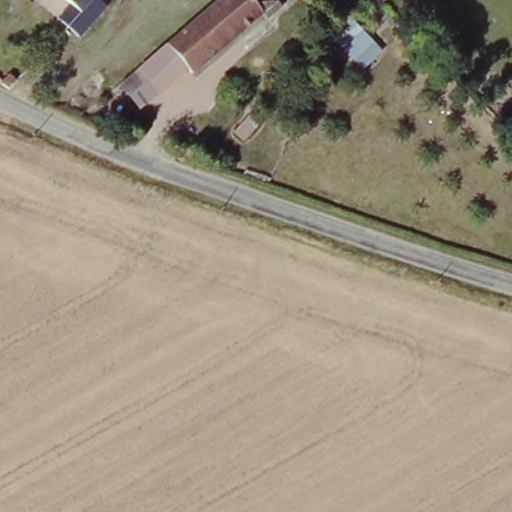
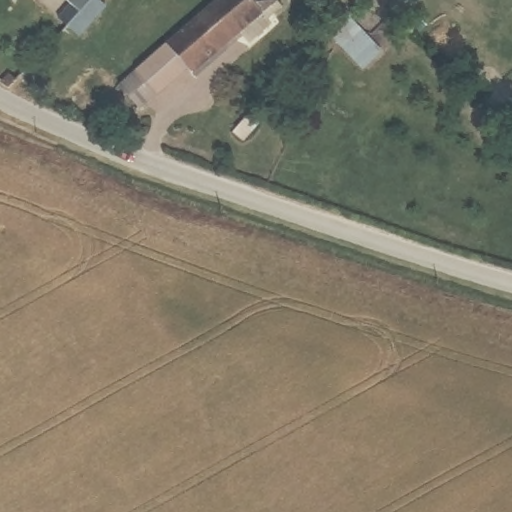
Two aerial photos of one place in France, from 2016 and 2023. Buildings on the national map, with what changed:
unchanged [(58,16),(70,4),(66,0),(105,0),(110,4),(80,36),(58,16)]
unchanged [(116,90),(138,73),(218,0),(283,0),(289,7),(281,15),(270,3),(193,75),(186,66),(156,93),(134,112),(116,90)]
unchanged [(354,16),(385,48),(363,71),(333,37),(354,16)]

